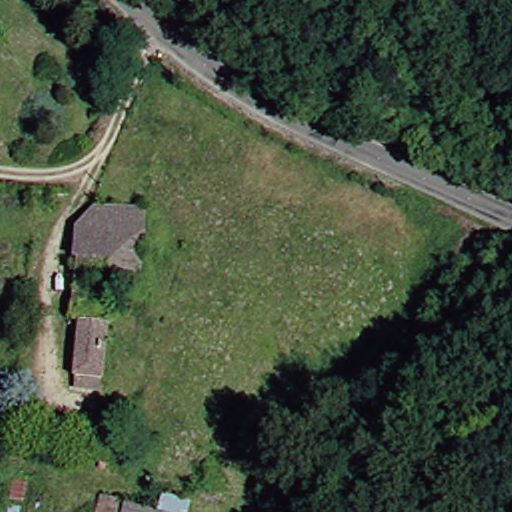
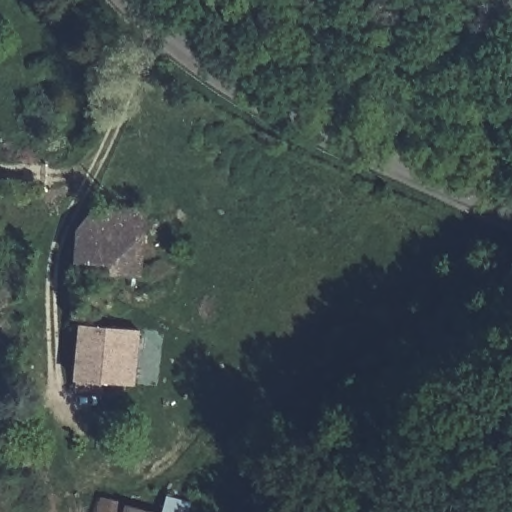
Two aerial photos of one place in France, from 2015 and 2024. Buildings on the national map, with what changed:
unchanged [(66,262),(69,226),(89,227),(91,205),(137,209),(132,267),(66,262)]
unchanged [(102,380),(74,378),(75,343),(65,343),(66,323),(76,324),(104,326),(102,380)]
new [(135,383),(102,380),(104,326),(140,330),(135,383)]
unchanged [(152,510),(157,496),(186,502),(183,512),(89,512),(92,497),(119,502),(152,510)]

